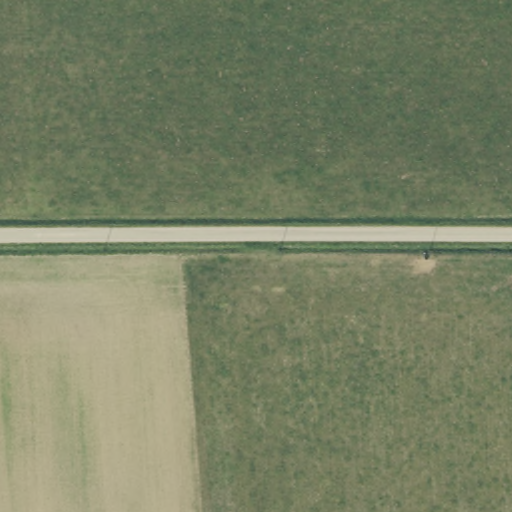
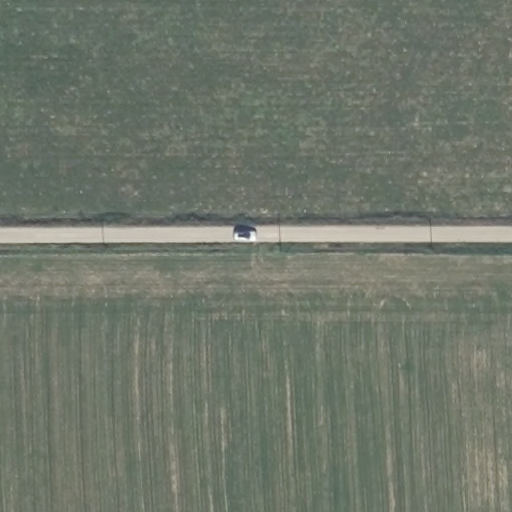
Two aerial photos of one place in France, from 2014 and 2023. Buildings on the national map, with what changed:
[]

